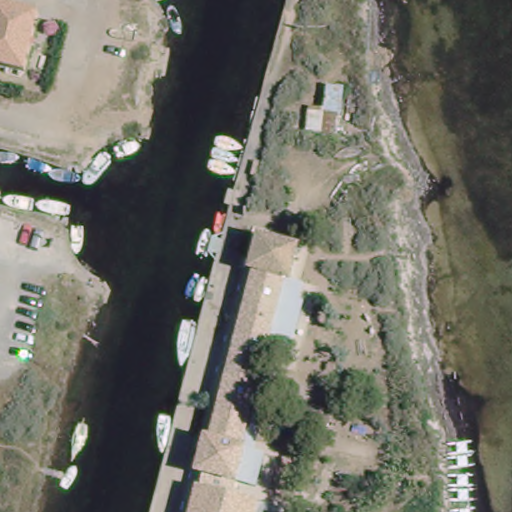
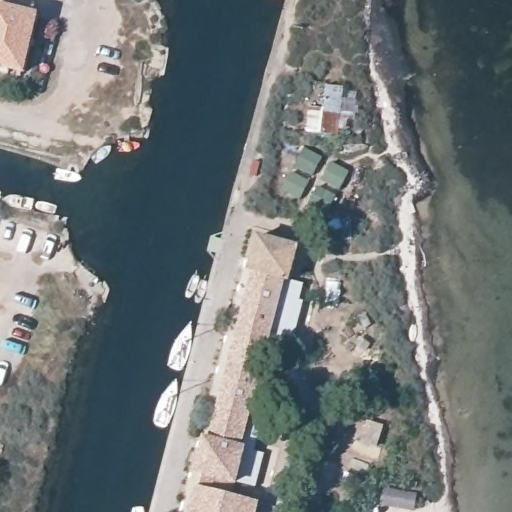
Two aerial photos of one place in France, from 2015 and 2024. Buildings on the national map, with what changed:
unchanged [(0,68),(0,2),(38,12),(24,73),(0,68)]
unchanged [(326,84),(343,85),(338,134),(307,132),(309,111),(323,111),(326,84)]
unchanged [(290,281),(286,282),(253,273),(249,271),(259,231),(301,242),(290,281)]
unchanged [(242,449),(247,450),(237,489),(195,478),(205,440),(211,441),(229,369),(253,273),(286,282),(280,303),(253,404),(242,449)]
unchanged [(258,512),(192,512),(196,492),(258,508),(258,512)]

